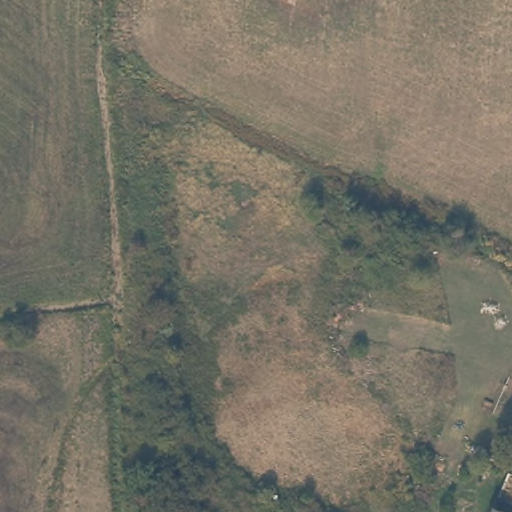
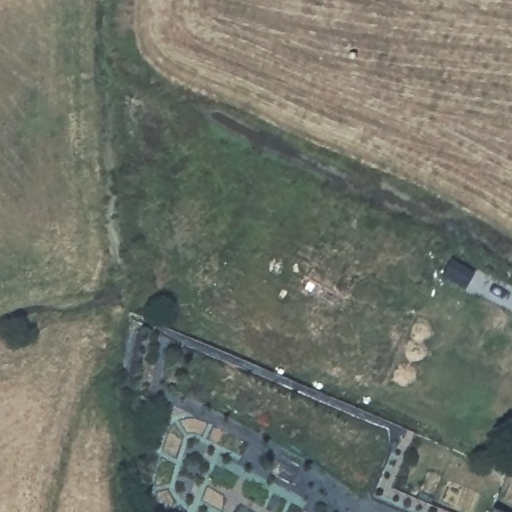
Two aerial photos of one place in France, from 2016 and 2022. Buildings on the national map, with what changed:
unchanged [(512,512),(494,512),(497,505),(512,512)]

